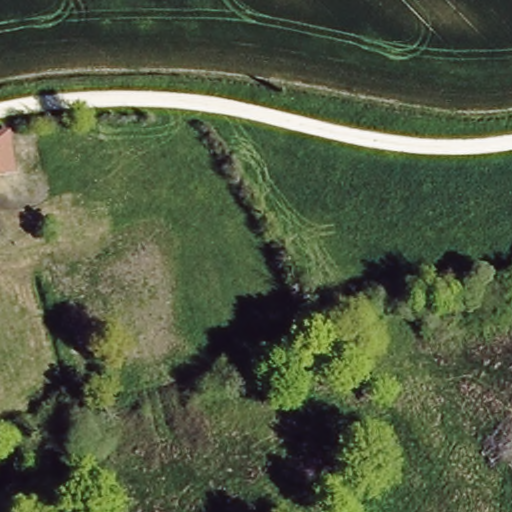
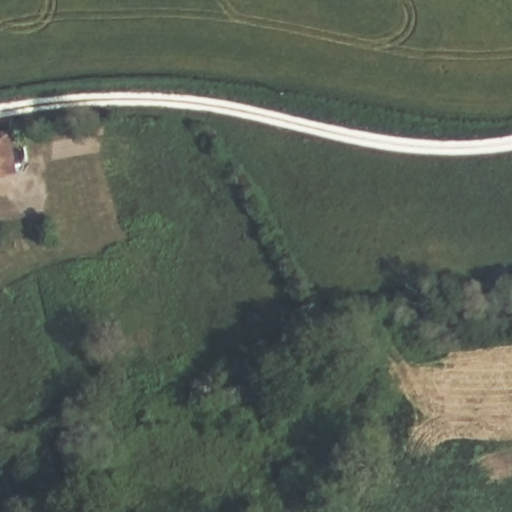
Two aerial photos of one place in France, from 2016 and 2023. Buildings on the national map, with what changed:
unchanged [(14,135),(18,173),(0,175),(0,137),(14,135)]

